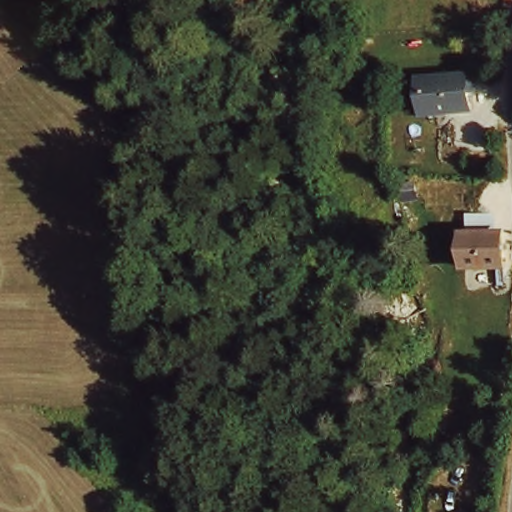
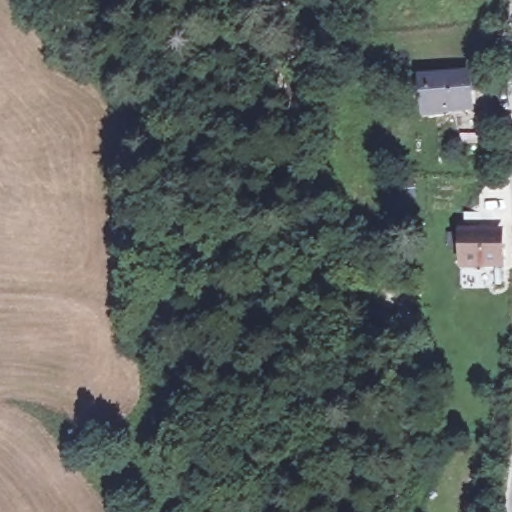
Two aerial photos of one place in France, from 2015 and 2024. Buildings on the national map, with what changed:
unchanged [(465,78),(468,110),(426,114),(423,81),(465,78)]
unchanged [(502,230),(506,266),(507,287),(492,289),(488,271),(462,273),(457,231),(502,230)]

